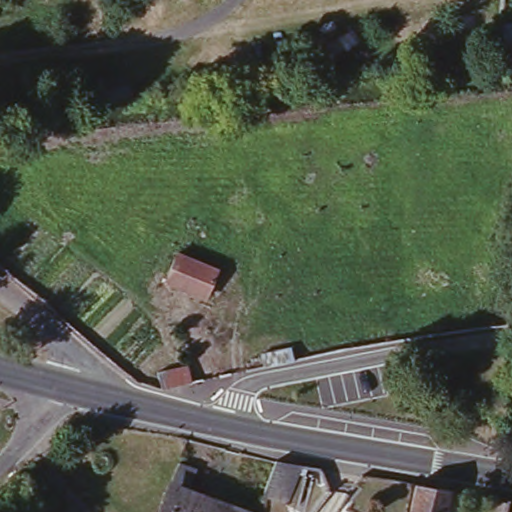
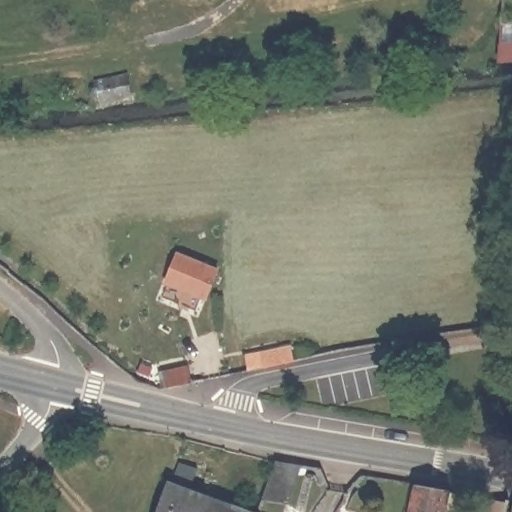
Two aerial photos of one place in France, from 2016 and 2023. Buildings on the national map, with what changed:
demolished [(512,59),(499,59),(502,25),(512,24),(512,59)]
unchanged [(85,79),(118,76),(121,98),(86,101),(85,79)]
unchanged [(169,284),(184,253),(217,268),(201,300),(169,284)]
unchanged [(260,344),(291,339),(295,354),(264,361),(260,344)]
unchanged [(157,364),(177,360),(186,359),(189,373),(180,375),(160,378),(157,364)]
unchanged [(200,455),(190,489),(259,512),(158,512),(181,449),(200,455)]
unchanged [(304,461),(293,503),(266,495),(277,456),(304,461)]
unchanged [(451,493),(448,512),(413,512),(418,486),(451,493)]
unchanged [(512,497),(508,512),(486,512),(493,487),(512,491),(512,497)]

